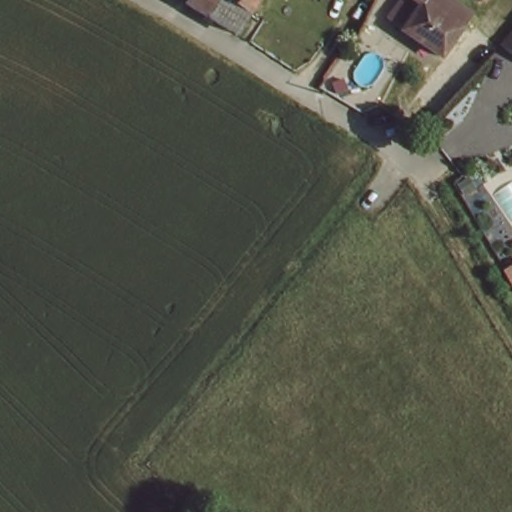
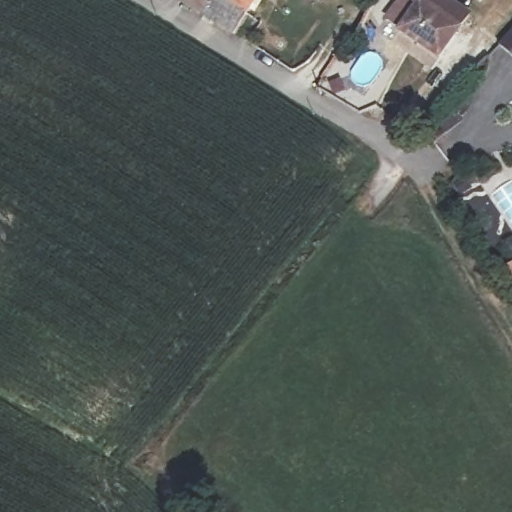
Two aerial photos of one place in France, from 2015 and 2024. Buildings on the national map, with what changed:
unchanged [(185,0),(253,0),(243,18),(231,40),(180,9),(185,0)]
unchanged [(385,16),(396,0),(451,0),(470,15),(437,58),(400,30),(402,27),(385,16)]
unchanged [(512,38),(512,60),(501,50),(512,38)]

